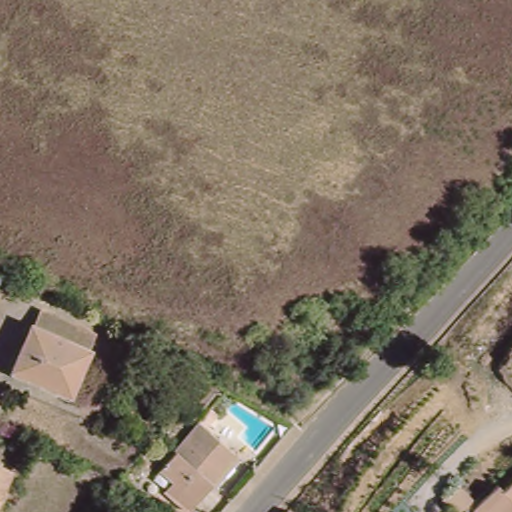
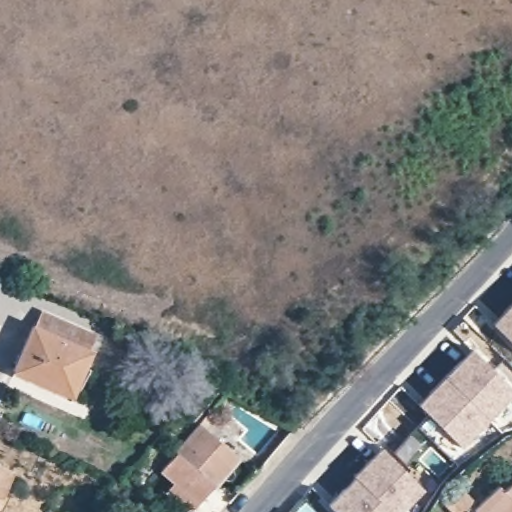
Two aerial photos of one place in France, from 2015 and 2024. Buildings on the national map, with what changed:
new [(512,304),(512,343),(493,323),(512,304)]
unchanged [(12,382),(33,336),(34,337),(41,322),(97,347),(90,361),(93,362),(72,408),(12,382)]
new [(419,405),(473,349),(512,389),(512,398),(463,448),(419,405)]
unchanged [(167,496),(173,488),(160,477),(201,431),(238,463),(197,510),(195,512),(185,512),(167,496)]
new [(328,506),(383,447),(426,491),(405,512),(335,512),(328,506)]
unchanged [(14,483),(0,510),(0,476),(14,483)]
unchanged [(474,510),(498,486),(505,492),(512,485),(512,512),(476,512),(474,510)]
unchanged [(464,512),(452,512),(442,502),(459,486),(475,502),(464,512)]

